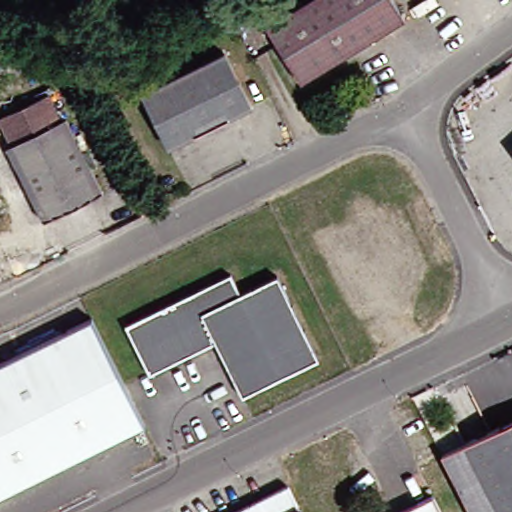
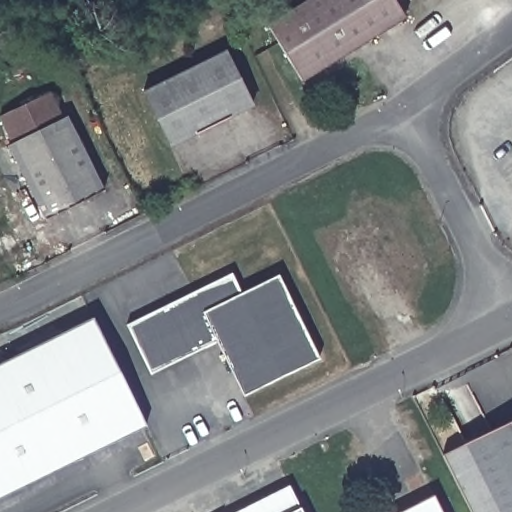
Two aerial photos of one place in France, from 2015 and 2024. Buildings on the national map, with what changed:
unchanged [(303,0),(393,0),(404,17),(302,79),(267,21),(303,0)]
unchanged [(246,110),(164,151),(137,97),(220,56),(246,110)]
unchanged [(1,145),(0,143),(0,117),(46,95),(56,121),(60,118),(96,190),(37,219),(1,145)]
unchanged [(512,154),(512,158),(510,155),(512,154)]
unchanged [(136,357),(122,328),(227,277),(236,296),(273,278),(314,362),(238,400),(212,345),(156,372),(146,377),(136,357)]
unchanged [(93,317),(105,342),(146,425),(0,497),(0,363),(93,317)]
unchanged [(512,512),(474,512),(445,453),(512,419),(512,512)]
unchanged [(436,457),(445,453),(474,512),(463,512),(436,457)]
unchanged [(283,489),(293,510),(294,512),(236,512),(283,489)]
unchanged [(433,507),(435,512),(423,512),(433,507)]

